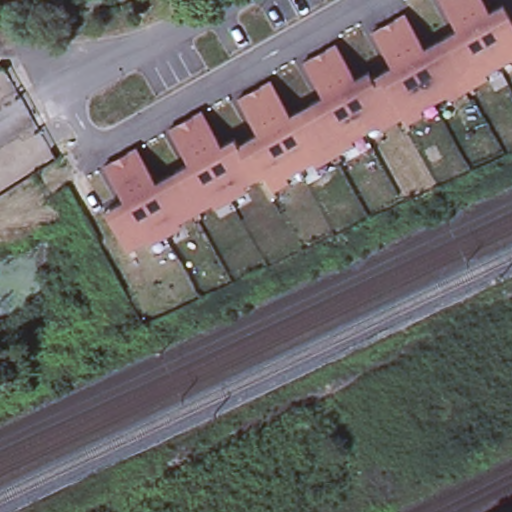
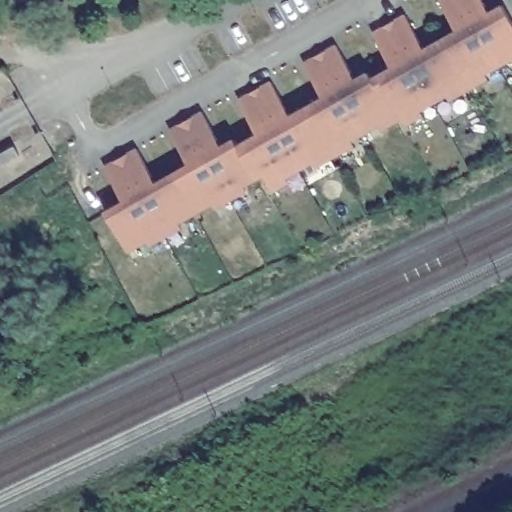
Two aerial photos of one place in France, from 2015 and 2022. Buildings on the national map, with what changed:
unchanged [(487,83),(449,104),(445,99),(419,113),(422,118),(407,125),(402,119),(382,130),(379,126),(352,142),(355,148),(269,190),(262,178),(179,226),(125,253),(105,211),(122,201),(105,167),(103,164),(124,155),(137,149),(156,182),(185,165),(188,163),(171,129),(202,112),(222,145),(234,138),(235,141),(237,145),(240,144),(257,133),(240,98),(270,82),(290,114),(321,97),(302,64),(336,46),(355,80),(360,77),(370,72),(372,79),(390,69),(389,64),(372,33),(404,16),(423,50),(457,32),(441,0),(483,0),(490,13),(505,5),(512,18),(512,67),(485,79),(487,83)]

